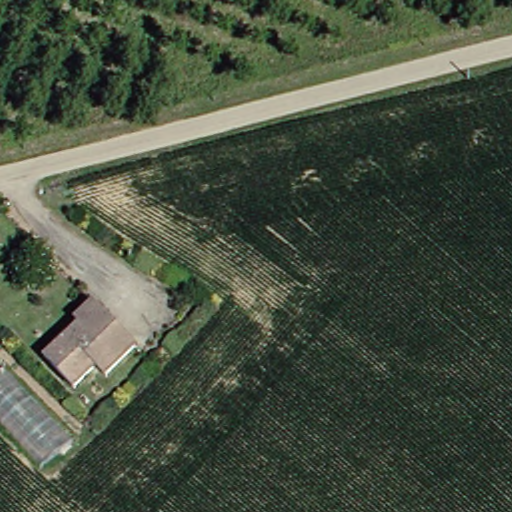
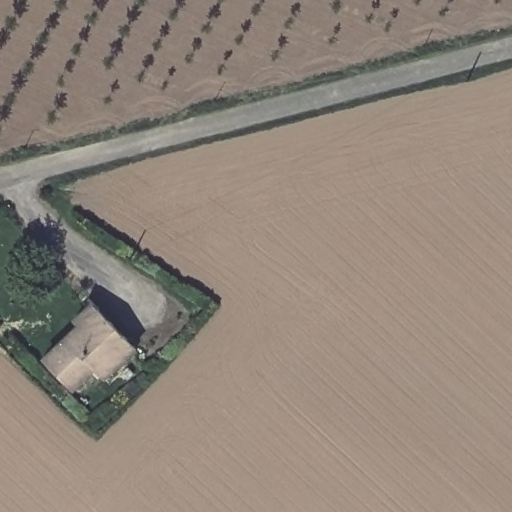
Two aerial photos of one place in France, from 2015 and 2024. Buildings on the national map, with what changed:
unchanged [(70,319),(87,302),(126,343),(95,372),(85,363),(64,384),(34,353),(70,319)]
demolished [(75,437),(39,471),(0,430),(0,371),(6,365),(75,437)]

